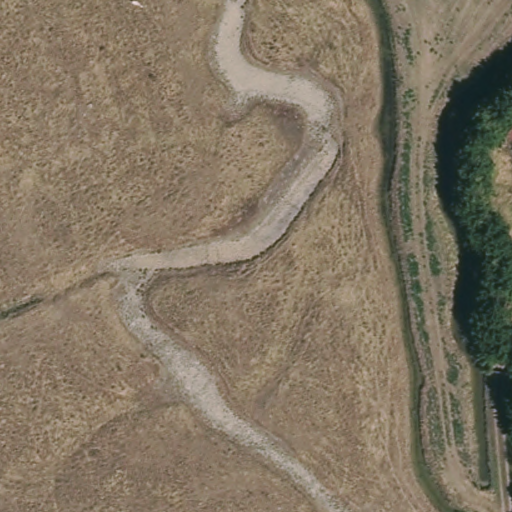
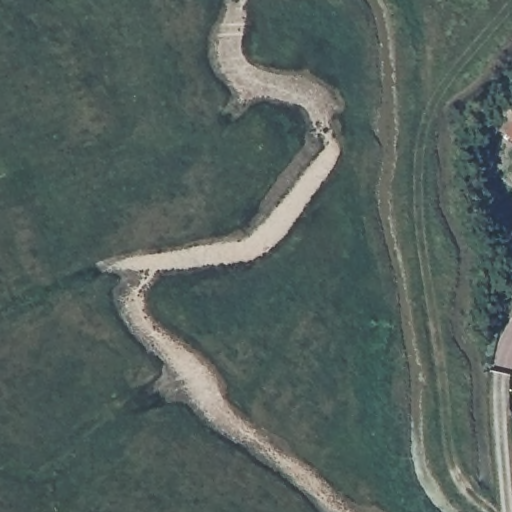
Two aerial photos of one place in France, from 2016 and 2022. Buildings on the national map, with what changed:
unchanged [(510,131),(512,129),(512,133),(510,131)]

